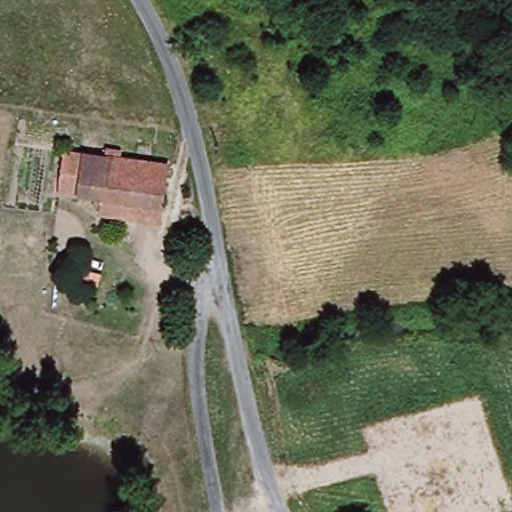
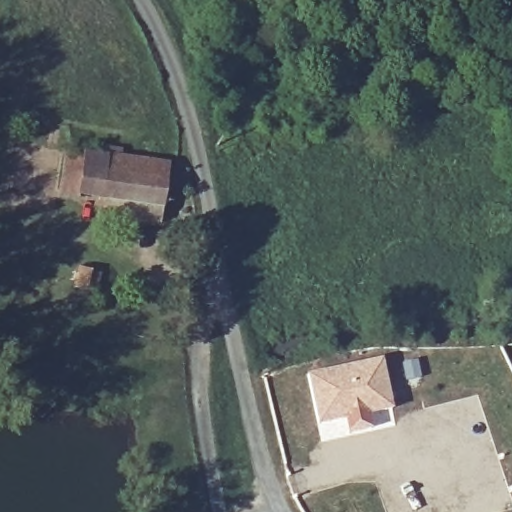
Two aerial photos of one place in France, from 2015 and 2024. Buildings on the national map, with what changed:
demolished [(86,141),(88,117),(154,122),(152,147),(86,141)]
unchanged [(108,215),(110,200),(65,192),(70,148),(175,166),(170,209),(167,225),(108,215)]
new [(391,408),(317,424),(307,373),(381,357),(391,408)]

